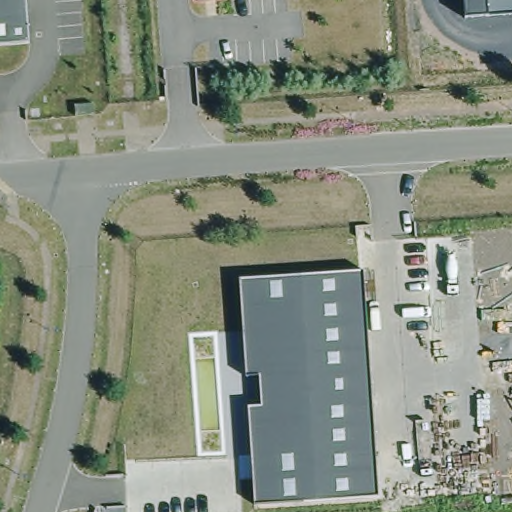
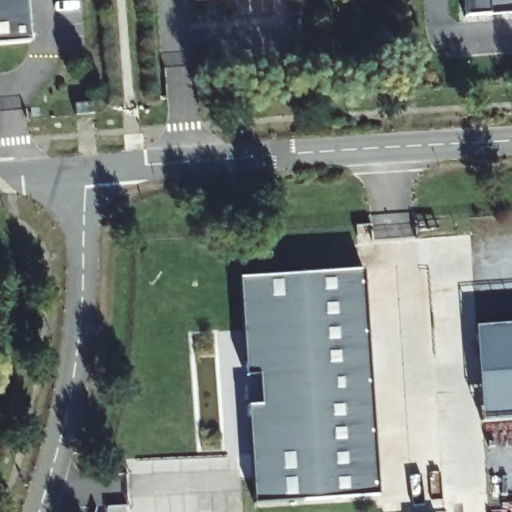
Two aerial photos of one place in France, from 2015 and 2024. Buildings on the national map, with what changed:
unchanged [(0,44),(0,0),(21,0),(24,42),(0,44)]
unchanged [(512,0),(512,16),(465,17),(464,0),(512,0)]
unchanged [(93,113),(75,115),(74,104),(93,102),(93,113)]
unchanged [(251,500),(245,405),(259,403),(259,370),(241,371),(236,277),(357,270),(375,494),(251,500)]
new [(512,325),(512,422),(484,423),(480,328),(512,325)]

